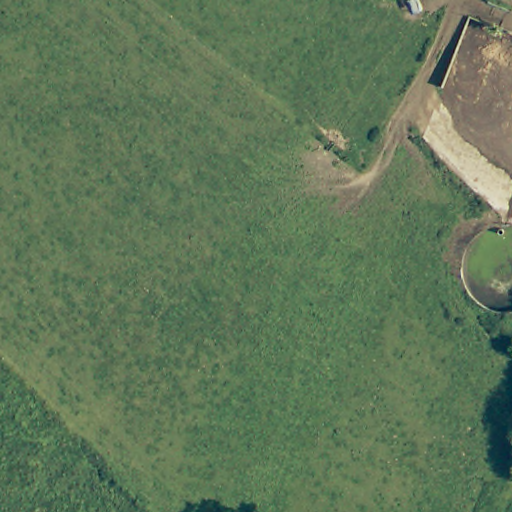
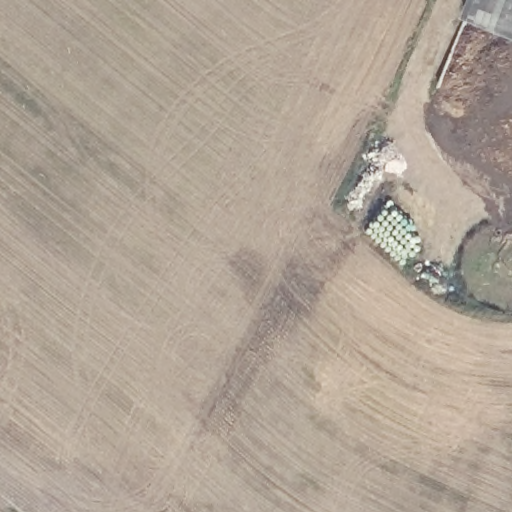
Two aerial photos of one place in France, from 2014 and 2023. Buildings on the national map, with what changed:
new [(472,0),(512,0),(512,34),(466,16),(472,0)]

